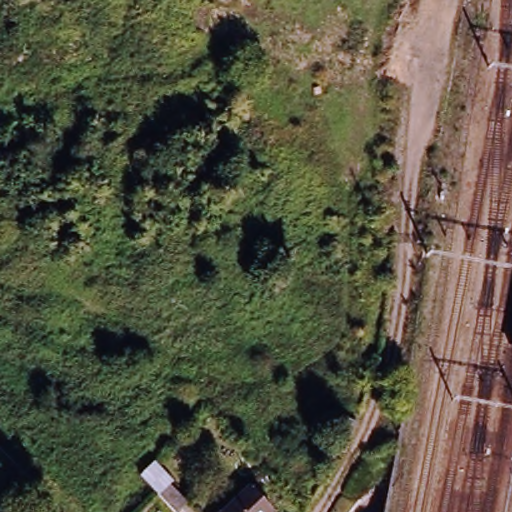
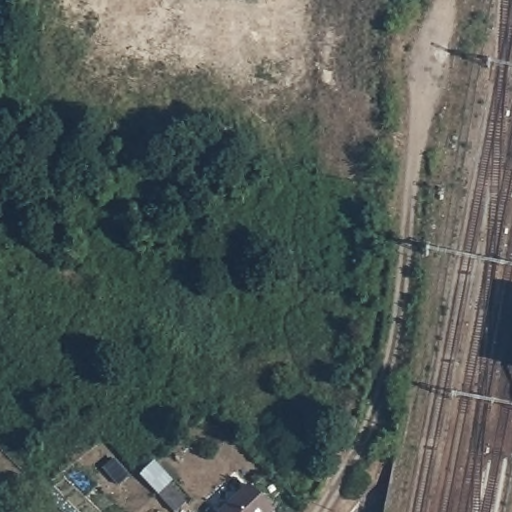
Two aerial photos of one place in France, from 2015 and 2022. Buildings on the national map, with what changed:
unchanged [(327,443),(341,413),(360,421),(346,452),(327,443)]
unchanged [(268,497),(275,504),(267,512),(220,512),(252,481),(268,497)]
unchanged [(168,483),(188,503),(180,512),(175,512),(157,494),(168,483)]

